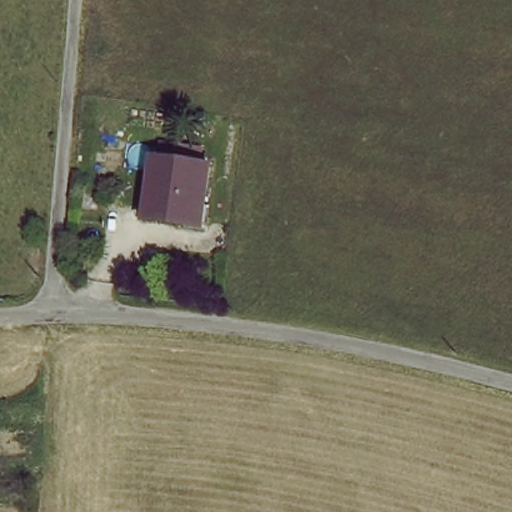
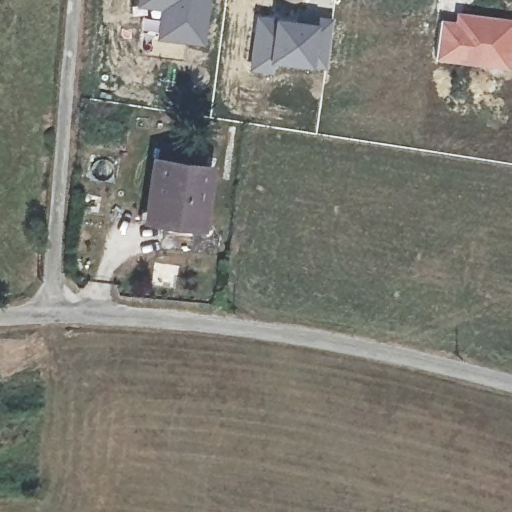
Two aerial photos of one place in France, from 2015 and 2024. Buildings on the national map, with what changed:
new [(213,0),(207,47),(155,40),(158,10),(136,7),(137,0),(213,0)]
new [(438,17),(453,19),(455,10),(512,18),(512,34),(507,70),(432,60),(438,17)]
new [(255,13),(316,20),(317,15),(335,18),(328,70),(278,64),(267,76),(248,71),(255,13)]
unchanged [(150,221),(159,169),(208,176),(200,229),(150,221)]

